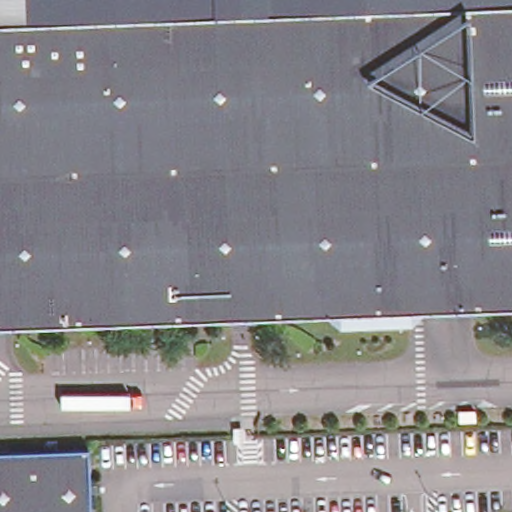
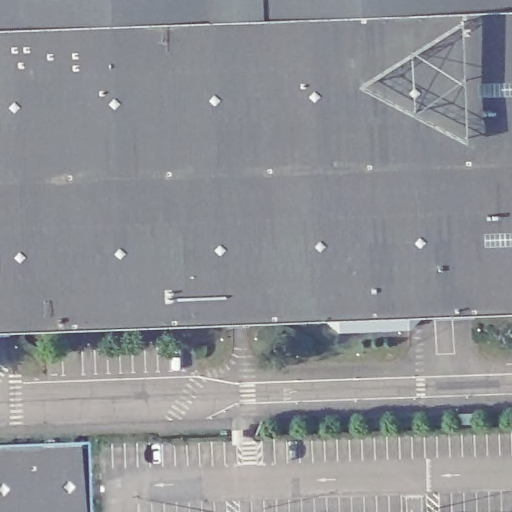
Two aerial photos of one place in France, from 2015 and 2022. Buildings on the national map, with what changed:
unchanged [(0,25),(0,0),(512,0),(512,7),(0,25)]
unchanged [(424,314),(408,329),(340,333),(321,318),(0,329),(0,25),(512,7),(512,310),(424,314)]
unchanged [(88,512),(0,512),(0,458),(87,456),(88,512)]

